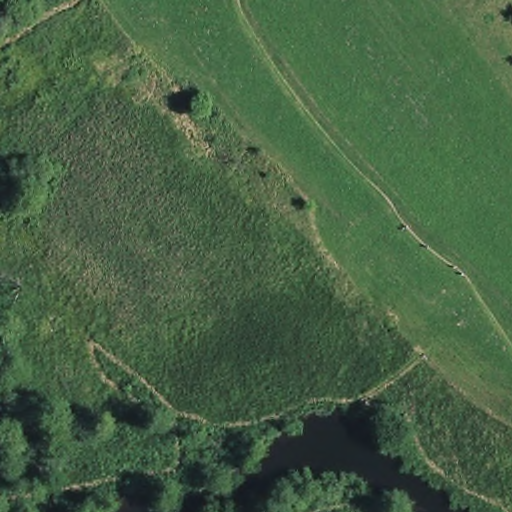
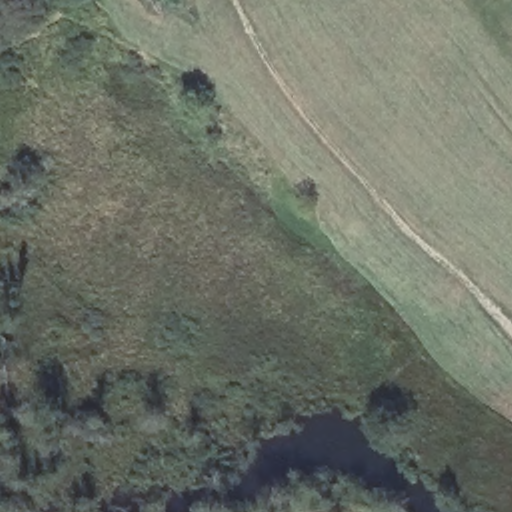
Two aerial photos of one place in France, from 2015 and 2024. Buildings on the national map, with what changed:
[]

